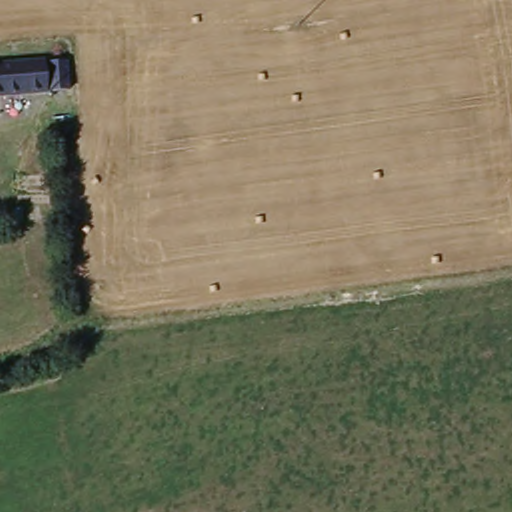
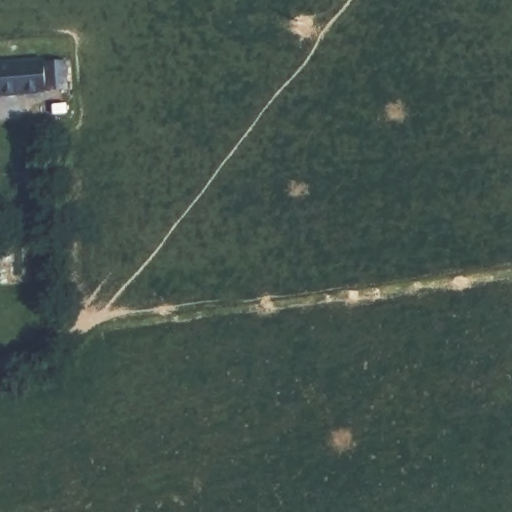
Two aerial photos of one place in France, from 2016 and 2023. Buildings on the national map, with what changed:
unchanged [(0,66),(48,61),(51,93),(0,98),(0,66)]

